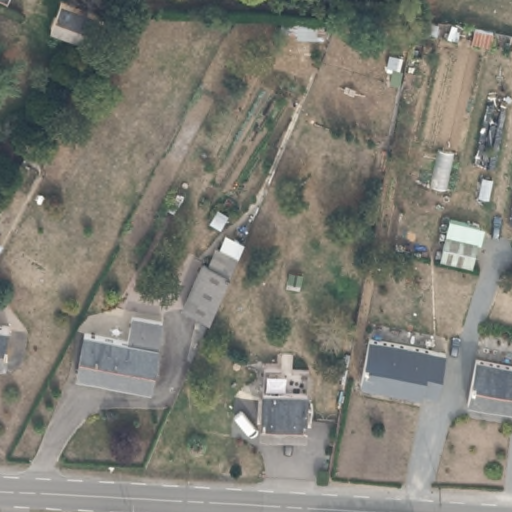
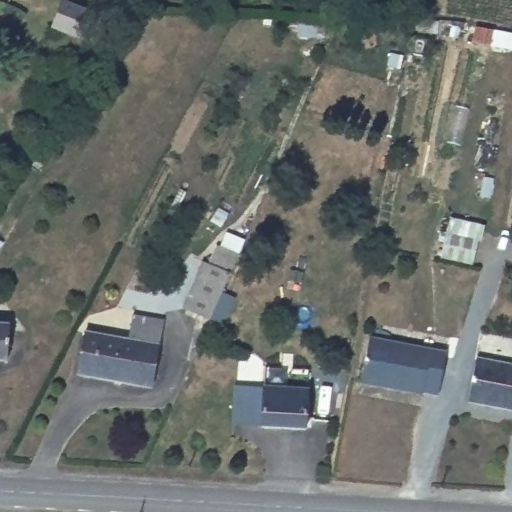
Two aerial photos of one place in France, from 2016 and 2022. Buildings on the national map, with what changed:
unchanged [(51,28),(62,0),(98,15),(87,42),(51,28)]
unchanged [(187,298),(207,253),(214,256),(221,239),(242,246),(216,310),(187,298)]
unchanged [(76,382),(85,332),(125,337),(130,313),(162,316),(150,393),(76,382)]
unchanged [(0,323),(5,323),(2,361),(0,361),(0,323)]
unchanged [(425,390),(424,393),(361,382),(371,337),(447,351),(439,392),(425,390)]
unchanged [(468,406),(477,361),(512,368),(512,414),(468,406)]
unchanged [(259,437),(265,377),(309,380),(302,440),(259,437)]

